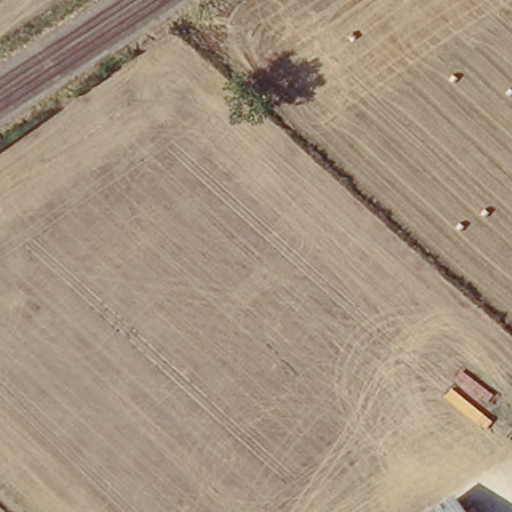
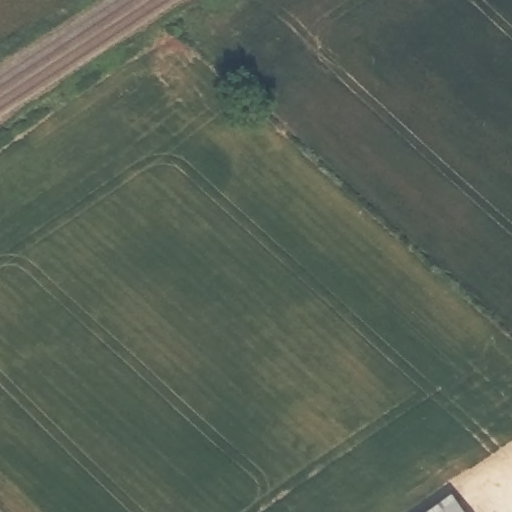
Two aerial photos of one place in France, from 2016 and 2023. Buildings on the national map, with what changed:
unchanged [(428,512),(454,495),(466,512),(428,512)]

